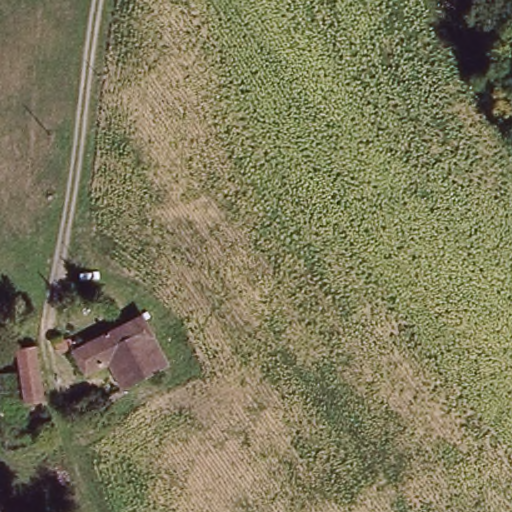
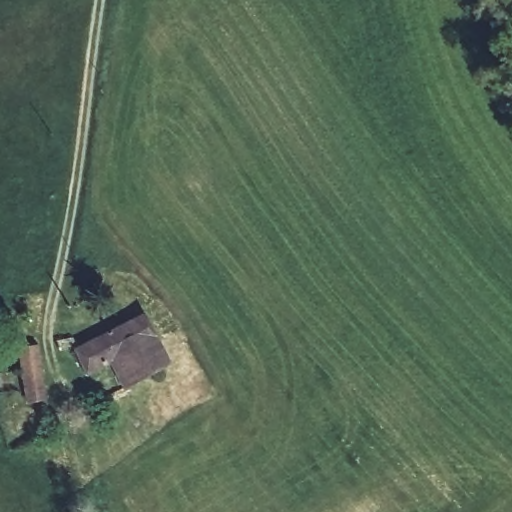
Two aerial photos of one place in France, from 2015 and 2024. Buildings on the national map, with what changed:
unchanged [(171,365),(131,392),(115,369),(94,383),(75,354),(137,316),(171,365)]
unchanged [(12,339),(28,335),(48,401),(34,406),(12,339)]
unchanged [(70,346),(75,354),(58,364),(55,352),(70,346)]

